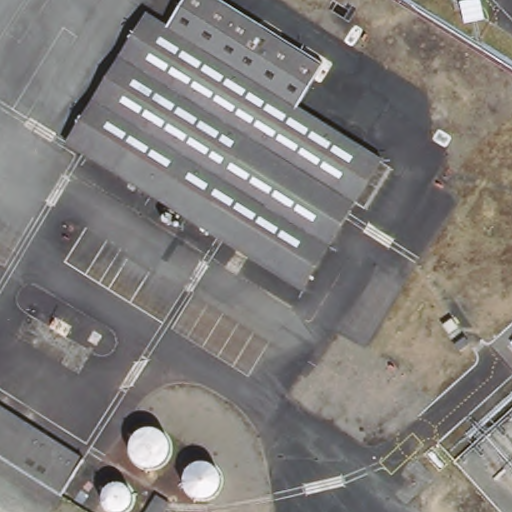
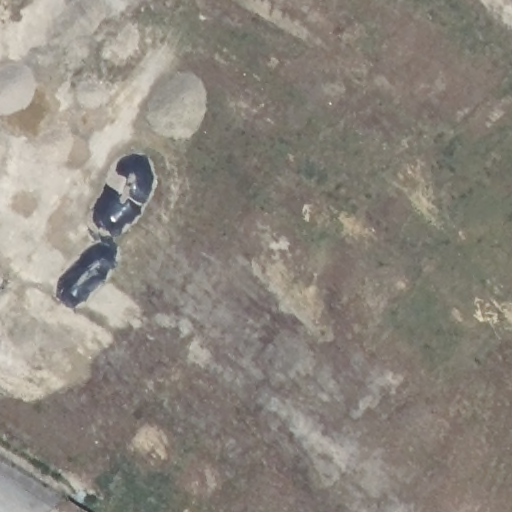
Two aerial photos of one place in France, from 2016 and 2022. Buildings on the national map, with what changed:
demolished [(163,29),(181,0),(220,0),(322,63),(293,109),(380,160),(300,292),(115,177),(193,45),(163,29)]
demolished [(61,494),(0,456),(0,405),(82,458),(61,494)]
demolished [(507,419),(512,425),(512,448),(495,429),(507,419)]
demolished [(485,440),(512,470),(512,496),(471,453),(485,440)]

